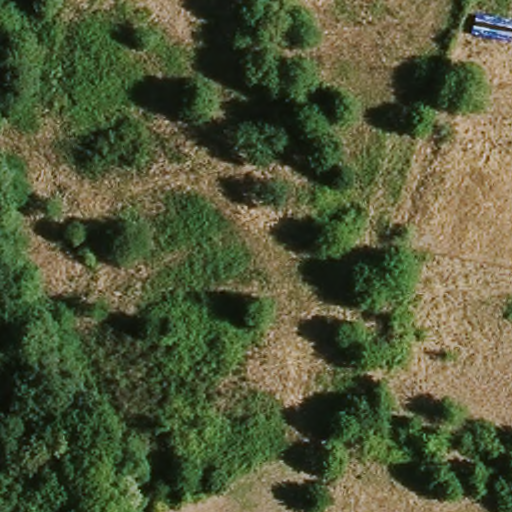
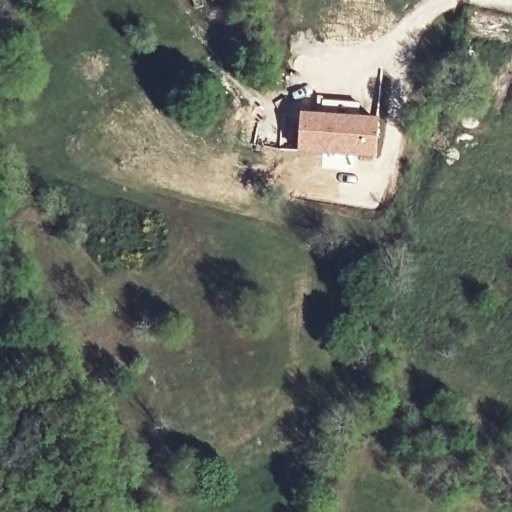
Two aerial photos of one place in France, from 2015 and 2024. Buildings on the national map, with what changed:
new [(322,117),(323,101),(360,104),(360,120),(377,119),(375,154),(301,152),(302,116),(322,117)]

